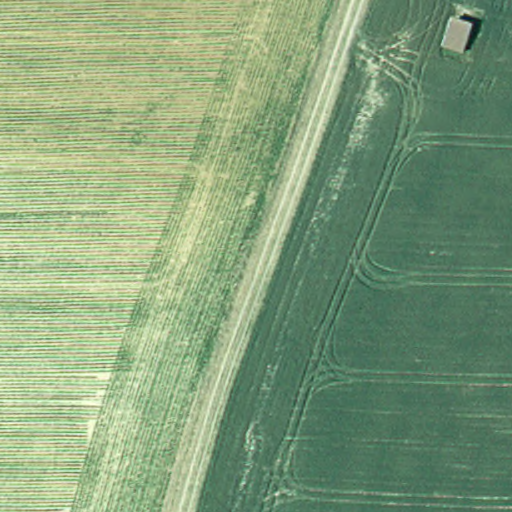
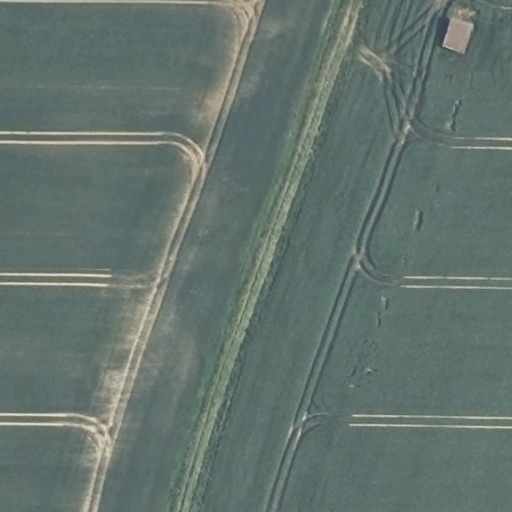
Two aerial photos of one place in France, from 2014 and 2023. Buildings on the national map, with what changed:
unchanged [(440,43),(447,9),(472,18),(460,53),(440,43)]

